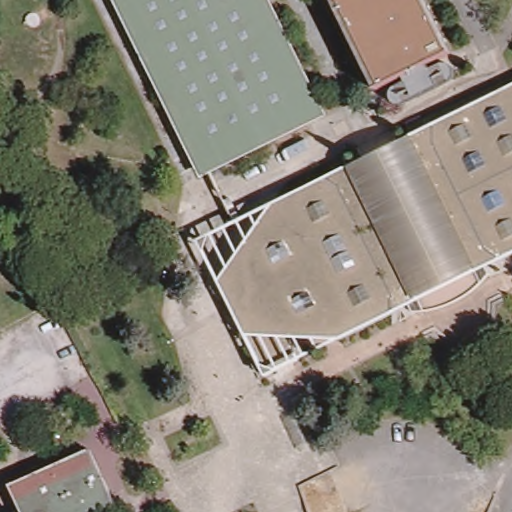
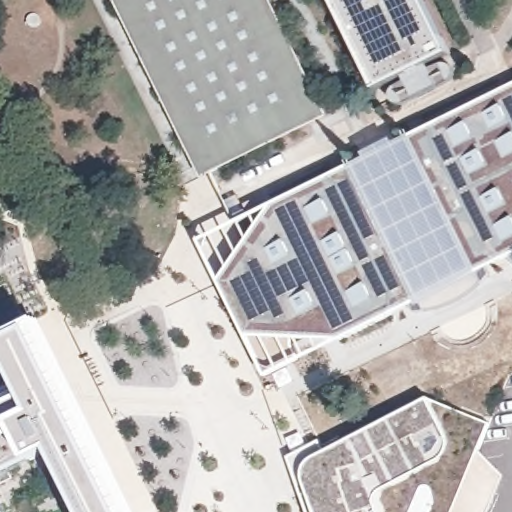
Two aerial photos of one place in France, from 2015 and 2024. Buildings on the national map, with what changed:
unchanged [(319,89),(334,121),(208,183),(119,0),(275,0),(319,89)]
unchanged [(330,84),(289,0),(310,0),(347,76),(330,84)]
unchanged [(379,89),(337,2),(336,0),(426,0),(452,53),(379,89)]
unchanged [(412,151),(429,142),(433,123),(512,84),(512,255),(499,261),(483,248),(466,258),(412,151)]
unchanged [(475,274),(421,300),(413,283),(359,178),(352,163),(406,137),(412,151),(466,258),(475,274)]
unchanged [(413,283),(397,291),(396,312),(339,341),(293,338),(292,338),(291,339),(291,340),(291,341),(299,357),(299,358),(299,359),(299,360),(298,361),(266,375),(235,312),(219,280),(266,207),(266,206),(268,205),(269,204),(303,188),(329,175),(347,184),(359,178),(413,283)]
unchanged [(242,216),(234,220),(226,203),(233,199),(242,216)]
new [(0,344),(30,328),(124,512),(84,512),(52,447),(33,454),(0,468),(0,413),(28,400),(0,344)]
new [(488,512),(312,512),(289,457),(318,443),(325,458),(441,405),(481,422),(475,445),(478,452),(502,477),(488,512)]
demolished [(101,512),(28,512),(15,484),(94,447),(120,503),(101,512)]

